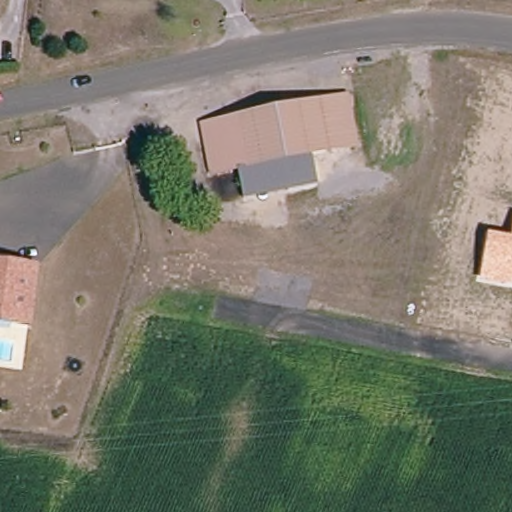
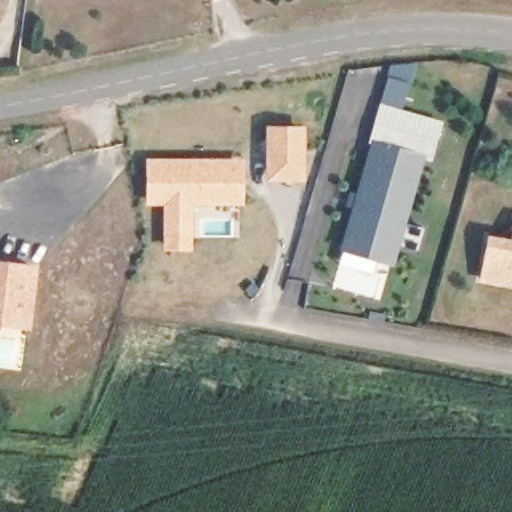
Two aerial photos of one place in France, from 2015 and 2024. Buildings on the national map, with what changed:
demolished [(215,124),(237,119),(344,96),(356,146),(314,155),(321,184),(262,197),(250,199),(249,193),(245,169),(226,173),(221,174),(210,125),(215,124)]
new [(438,142),(432,162),(425,159),(406,223),(425,228),(419,250),(400,245),(395,265),(341,250),(370,146),(368,145),(374,124),(438,142)]
new [(307,126),(306,180),(266,180),(267,126),(307,126)]
new [(245,158),(246,205),(193,205),(193,235),(164,236),(164,205),(147,205),(147,158),(245,158)]
unchanged [(511,236),(512,228),(512,285),(479,279),(487,233),(511,236)]
unchanged [(0,328),(0,267),(32,273),(24,317),(21,332),(0,328)]

